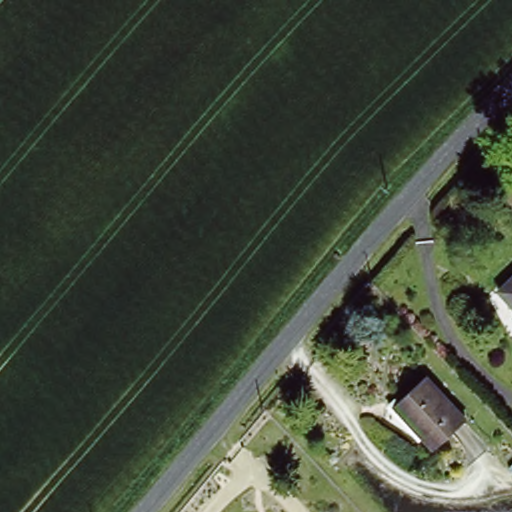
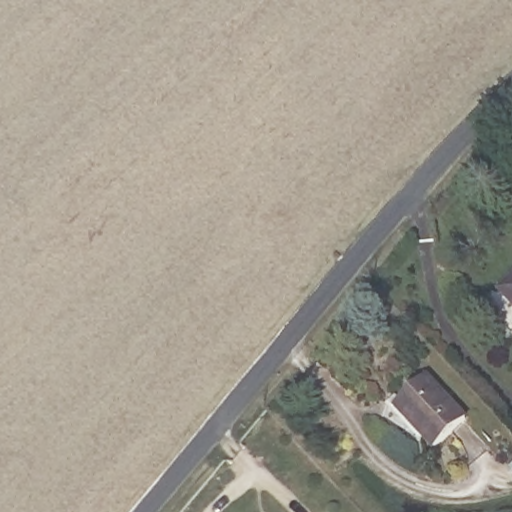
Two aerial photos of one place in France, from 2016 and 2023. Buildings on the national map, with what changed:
unchanged [(512,285),(512,306),(502,296),(512,285)]
unchanged [(425,385),(467,426),(437,456),(403,422),(409,417),(400,409),(425,385)]

